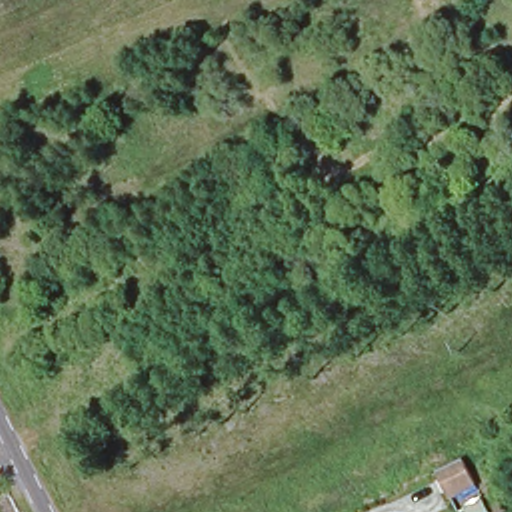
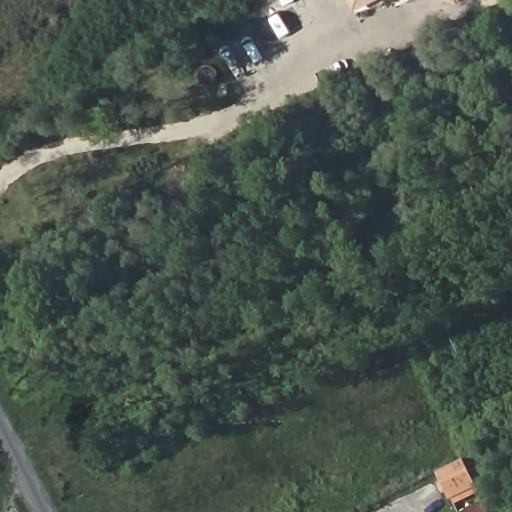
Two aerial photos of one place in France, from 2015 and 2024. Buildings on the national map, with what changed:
new [(353,11),(347,0),(376,0),(353,11)]
new [(459,4),(446,0),(461,0),(459,4)]
unchanged [(450,495),(436,467),(462,454),(476,483),(450,495)]

